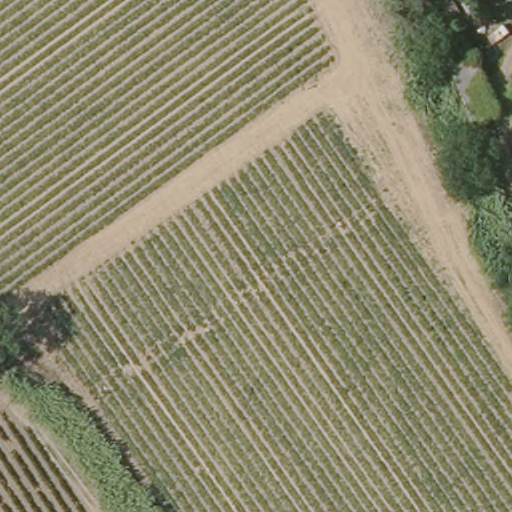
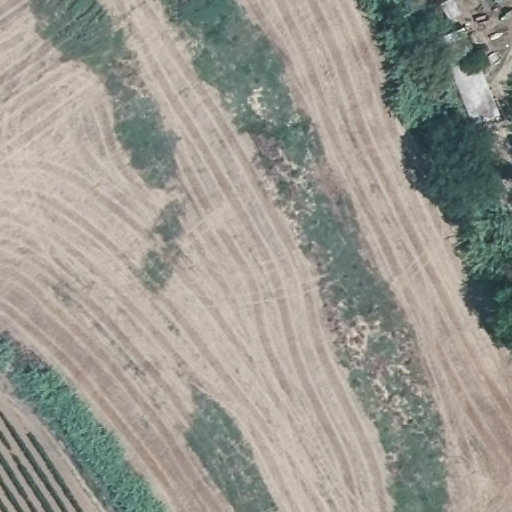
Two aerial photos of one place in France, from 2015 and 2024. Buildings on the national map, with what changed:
unchanged [(479,60),(502,116),(475,126),(449,71),(479,60)]

